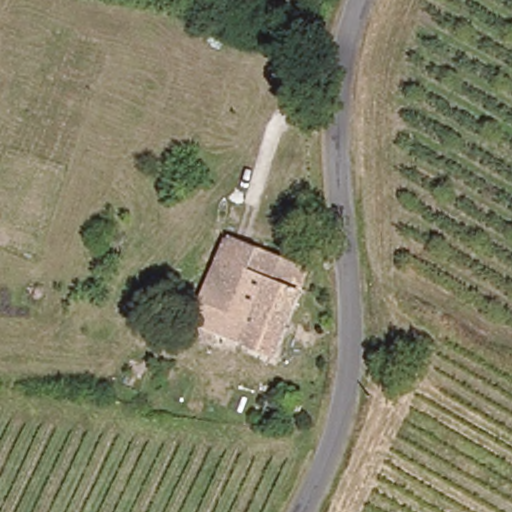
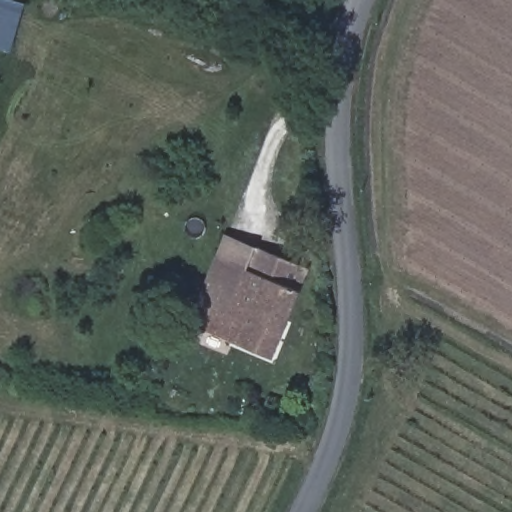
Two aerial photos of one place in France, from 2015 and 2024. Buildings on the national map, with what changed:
new [(0,47),(0,0),(18,0),(21,1),(9,50),(0,47)]
unchanged [(303,267),(267,354),(218,336),(214,347),(182,335),(210,274),(185,263),(200,225),(303,267)]
unchanged [(282,399),(273,423),(262,420),(270,395),(282,399)]

